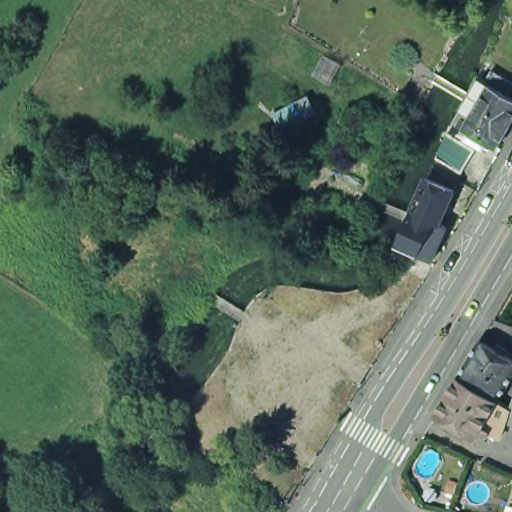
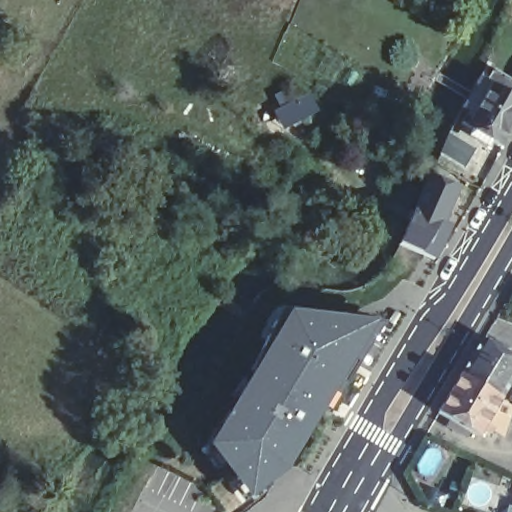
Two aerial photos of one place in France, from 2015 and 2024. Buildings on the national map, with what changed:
unchanged [(475,132),(467,129),(462,125),(465,118),(471,122),(473,118),(463,113),(482,79),(487,82),(489,82),(495,71),(512,80),(512,127),(500,147),(492,143),(490,149),(471,139),(475,132)]
unchanged [(277,114),(284,111),(313,96),(321,110),(293,126),(285,130),(277,114)]
unchanged [(441,160),(452,135),(478,150),(465,172),(441,160)]
unchanged [(392,259),(398,244),(431,177),(456,190),(440,222),(447,226),(431,257),(425,255),(423,257),(415,274),(392,259)]
new [(382,321),(285,475),(248,503),(208,445),(290,311),(382,321)]
demolished [(250,377),(227,362),(233,347),(240,330),(267,347),(281,356),(272,371),(263,385),(250,377)]
unchanged [(504,431),(489,426),(487,430),(481,427),(477,432),(438,408),(447,392),(460,371),(471,352),(481,335),(512,353),(512,373),(500,394),(508,399),(510,400),(512,401),(512,416),(508,415),(504,431)]
demolished [(330,406),(287,380),(295,367),(308,346),(315,336),(342,352),(335,362),(351,372),(330,406)]
demolished [(252,384),(238,405),(222,395),(235,373),(252,384)]
demolished [(278,432),(283,425),(265,413),(287,380),(330,406),(308,441),(292,430),(287,437),(278,432)]

